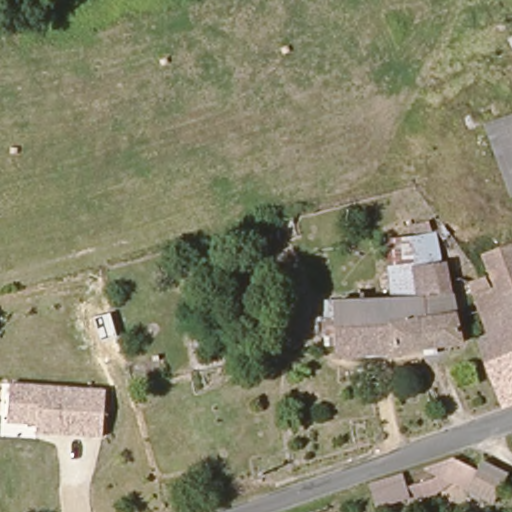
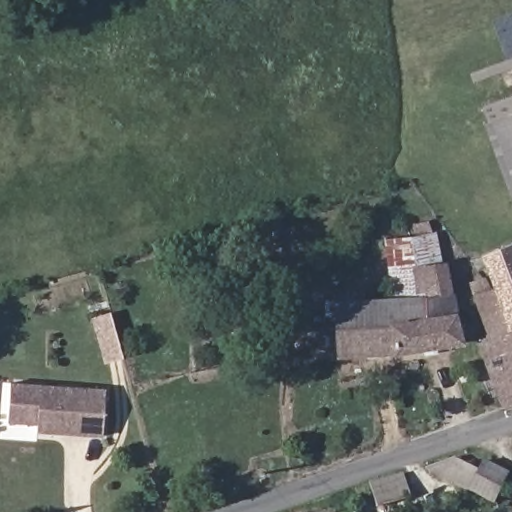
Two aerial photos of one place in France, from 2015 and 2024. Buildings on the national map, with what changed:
unchanged [(509,108),(512,107),(512,115),(511,115),(509,108)]
unchanged [(512,196),(508,197),(483,126),(511,115),(512,115),(512,196)]
unchanged [(416,237),(414,221),(430,219),(442,261),(445,261),(462,341),(403,353),(341,358),(338,337),(327,338),(325,320),(337,318),(335,298),(397,300),(383,241),(416,237)]
unchanged [(490,274),(482,252),(512,242),(512,326),(508,327),(490,274)]
unchanged [(477,340),(488,336),(469,281),(490,274),(508,327),(512,326),(512,349),(484,359),(477,340)]
new [(107,360),(102,341),(95,318),(112,313),(118,336),(124,356),(107,360)]
unchanged [(484,359),(512,349),(512,400),(499,405),(484,359)]
unchanged [(103,436),(10,429),(13,384),(106,389),(103,436)]
unchanged [(425,465),(454,455),(475,466),(479,459),(505,474),(512,478),(512,512),(510,512),(489,500),(425,465)]
unchanged [(403,472),(405,483),(418,481),(422,500),(405,503),(403,497),(373,504),(367,484),(403,472)]

